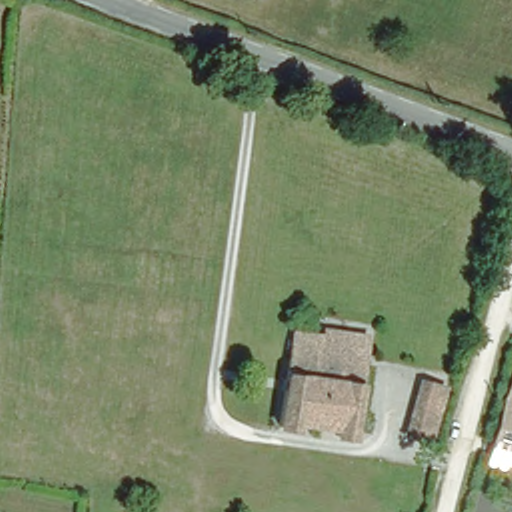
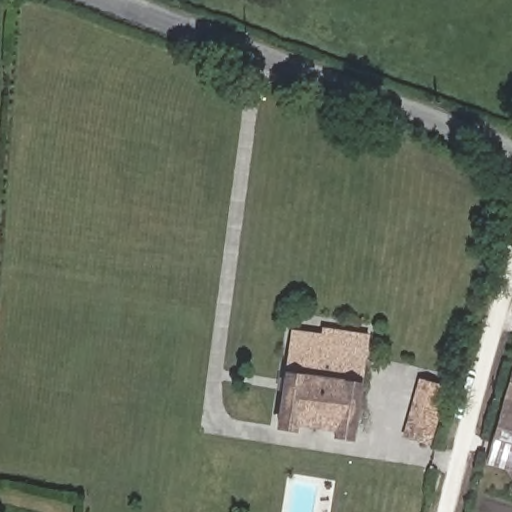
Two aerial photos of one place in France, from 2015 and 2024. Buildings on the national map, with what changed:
unchanged [(350,444),(335,442),(336,435),(294,428),(293,436),(278,433),(287,375),(285,375),(291,337),(323,341),(323,336),(366,342),(350,444)]
unchanged [(431,441),(400,432),(415,377),(447,386),(431,441)]
unchanged [(489,460),(492,450),(512,378),(512,466),(489,460)]

